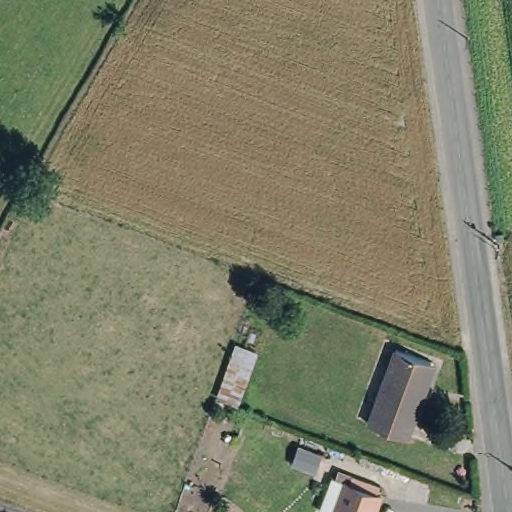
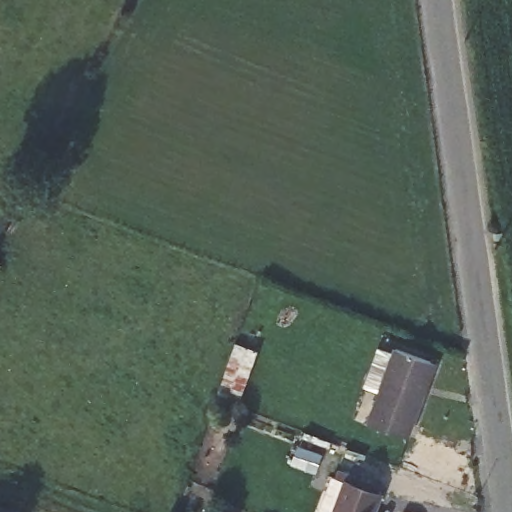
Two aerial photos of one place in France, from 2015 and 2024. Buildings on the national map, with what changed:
unchanged [(258,350),(238,405),(216,397),(236,342),(258,350)]
unchanged [(369,418),(396,343),(432,356),(435,357),(424,388),(408,432),(369,418)]
unchanged [(331,512),(324,509),(338,476),(357,483),(360,476),(382,484),(379,492),(386,494),(379,512),(331,512)]

